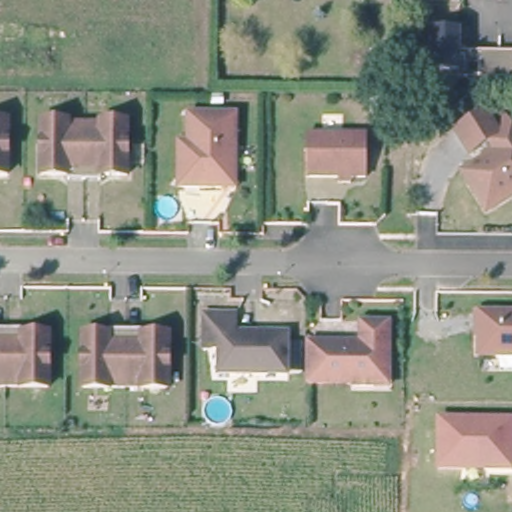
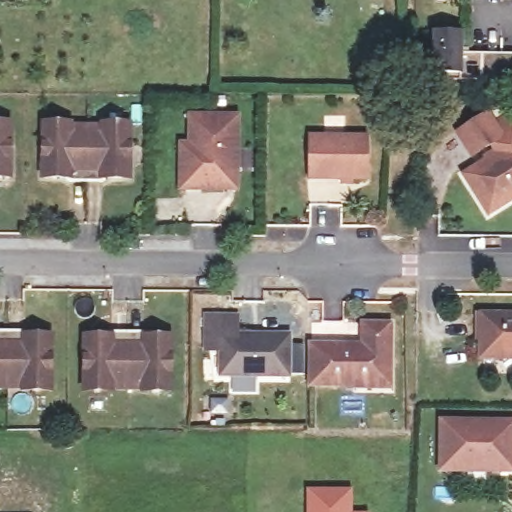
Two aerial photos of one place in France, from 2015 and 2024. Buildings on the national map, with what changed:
unchanged [(435,72),(435,35),(461,35),(461,55),(512,54),(512,81),(461,81),(435,81),(435,72)]
unchanged [(386,102),(371,102),(371,91),(386,91),(386,102)]
unchanged [(242,113),(242,170),(229,170),(228,187),(184,187),(185,141),(192,142),(192,114),(242,113)]
unchanged [(491,217),(465,176),(498,155),(493,145),(473,157),(458,132),(491,113),(497,122),(507,115),(512,124),(512,203),(491,217)]
unchanged [(7,170),(0,171),(0,121),(7,121),(7,170)]
unchanged [(124,130),(126,178),(98,180),(97,186),(64,185),(64,180),(39,179),(37,130),(124,130)]
unchanged [(371,132),(372,175),(312,175),(311,132),(371,132)]
unchanged [(512,313),(512,358),(497,358),(497,355),(479,355),(480,338),(476,338),(476,312),(512,313)]
unchanged [(302,375),(287,375),(286,377),(221,376),(220,352),(205,352),(205,317),(234,316),(234,336),(287,336),(287,337),(301,338),(302,375)]
unchanged [(372,390),(345,388),(345,384),(305,385),(305,342),(357,342),(358,320),(386,320),(385,363),(386,390),(372,390)]
unchanged [(22,338),(46,339),(47,389),(0,389),(0,331),(22,331),(22,338)]
unchanged [(104,339),(104,332),(136,332),(137,339),(163,340),(165,390),(77,390),(79,340),(104,339)]
unchanged [(512,421),(512,470),(441,470),(442,421),(512,421)]
new [(352,511),(368,511),(369,512),(306,512),(306,488),(352,487),(352,511)]

